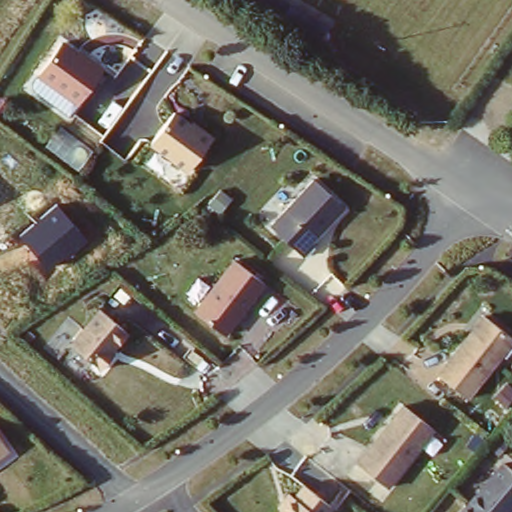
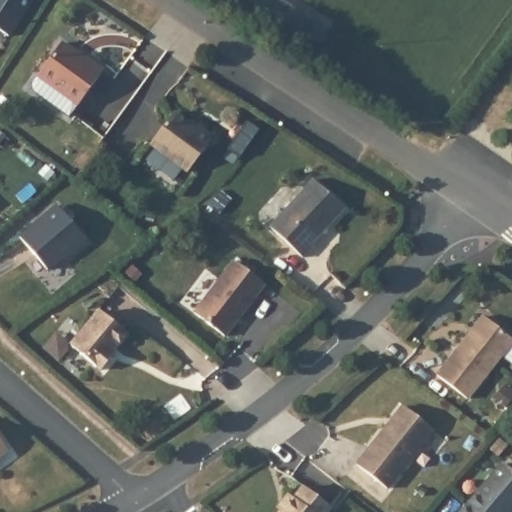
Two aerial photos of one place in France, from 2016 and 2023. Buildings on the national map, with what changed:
new [(0,32),(0,0),(33,0),(10,39),(0,32)]
unchanged [(252,0),(286,0),(326,26),(317,41),(252,0)]
unchanged [(64,41),(104,67),(80,102),(39,72),(64,41)]
unchanged [(162,127),(160,123),(165,114),(176,121),(189,116),(216,135),(189,172),(151,142),(162,127)]
unchanged [(317,179),(345,205),(316,237),(320,241),(311,252),(275,222),(317,179)]
unchanged [(19,238),(60,205),(86,239),(45,270),(19,238)]
unchanged [(233,260),(270,283),(260,300),(257,299),(230,334),(199,308),(233,260)]
unchanged [(100,306),(132,331),(105,368),(74,340),(100,306)]
unchanged [(483,314),(512,334),(512,341),(470,396),(441,372),(483,314)]
unchanged [(405,403),(437,428),(393,486),(362,460),(405,403)]
unchanged [(0,457),(0,433),(11,450),(0,457)]
unchanged [(502,460),(512,468),(512,503),(505,510),(507,512),(461,512),(502,460)]
unchanged [(0,464),(0,461),(1,463),(0,464)]
unchanged [(285,505),(283,502),(291,493),(297,497),(306,485),(335,508),(331,512),(280,512),(285,505)]

